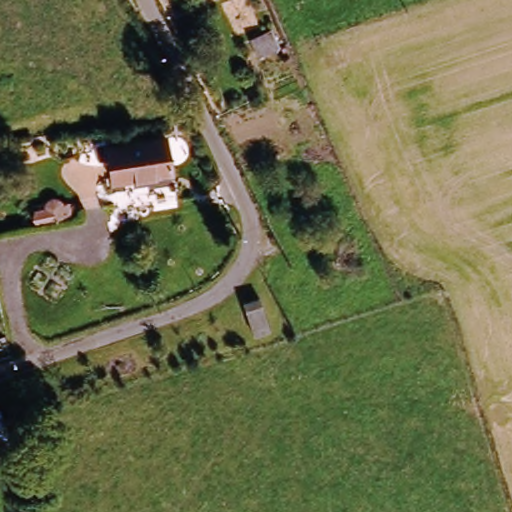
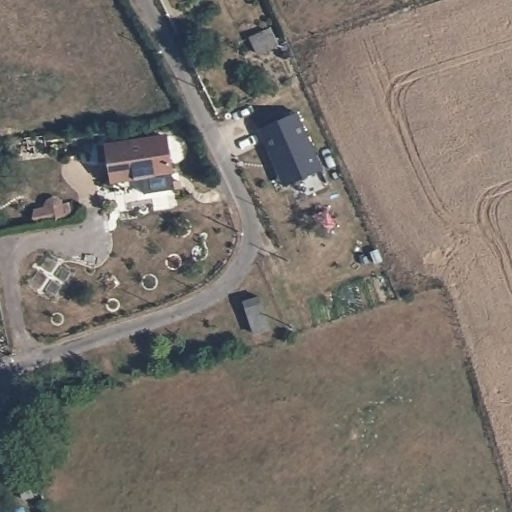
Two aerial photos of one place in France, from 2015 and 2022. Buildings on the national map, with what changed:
unchanged [(260,54),(253,35),(268,29),(276,48),(260,54)]
demolished [(243,83),(237,64),(252,58),(260,77),(243,83)]
new [(297,111),(322,169),(285,186),(278,169),(279,168),(275,157),(273,158),(260,128),(297,111)]
unchanged [(170,173),(105,185),(101,155),(162,142),(170,173)]
unchanged [(259,318),(238,330),(227,307),(250,297),(259,318)]
unchanged [(3,446),(0,447),(0,436),(3,446)]

